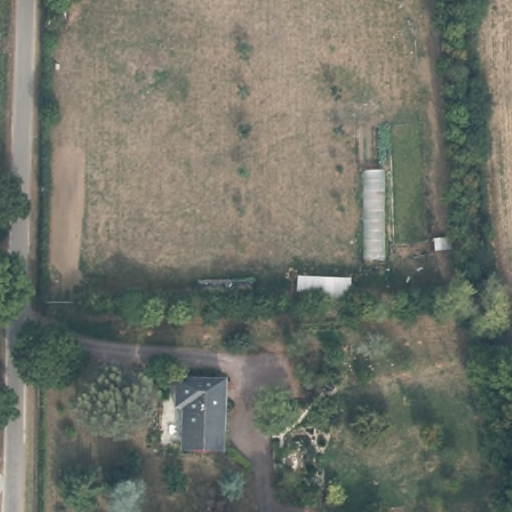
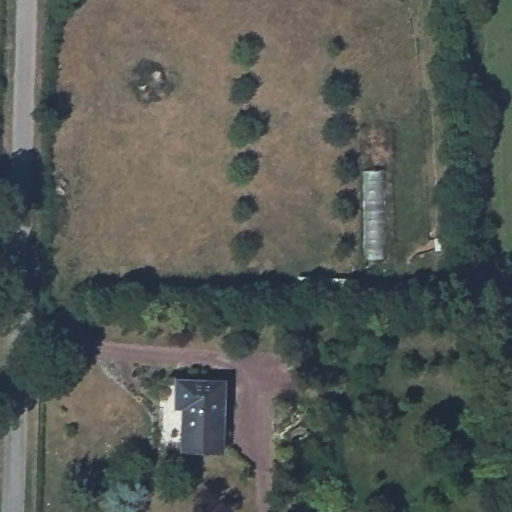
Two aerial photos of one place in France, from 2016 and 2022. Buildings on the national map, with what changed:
unchanged [(222,377),(224,442),(180,443),(180,407),(169,407),(169,400),(169,378),(222,377)]

